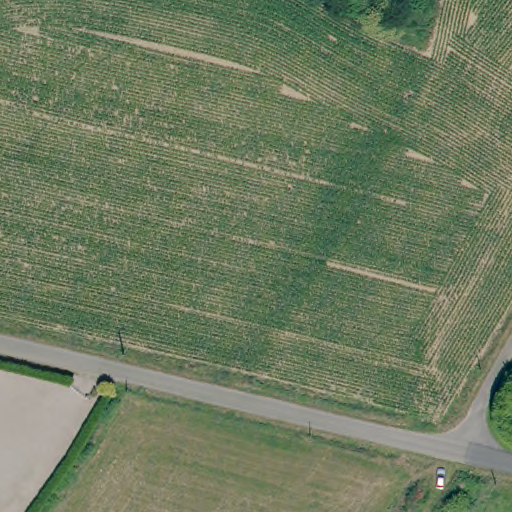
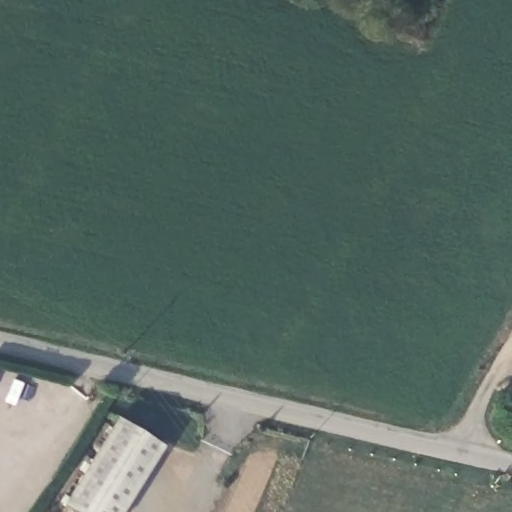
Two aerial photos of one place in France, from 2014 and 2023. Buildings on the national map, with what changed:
unchanged [(512,411),(512,419),(510,418),(512,411)]
new [(124,512),(75,512),(64,505),(119,418),(165,446),(124,512)]

